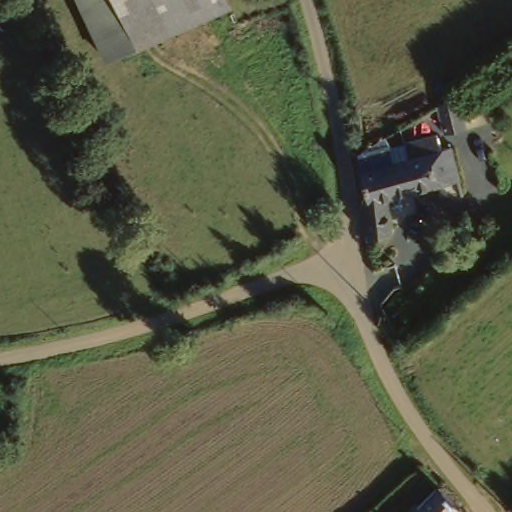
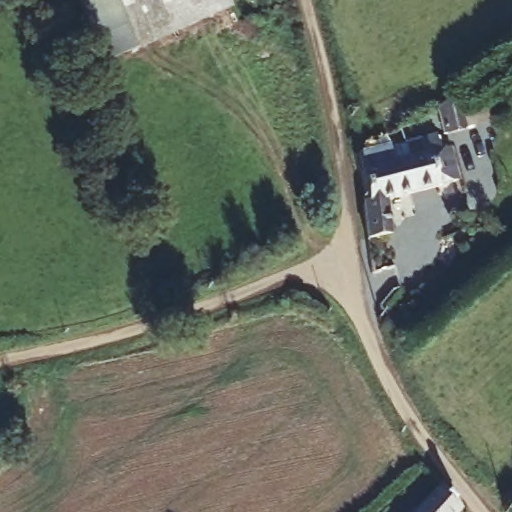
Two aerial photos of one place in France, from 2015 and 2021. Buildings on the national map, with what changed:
unchanged [(79,0),(124,0),(152,41),(117,64),(79,0)]
unchanged [(217,0),(152,41),(124,0),(217,0)]
unchanged [(449,104),(463,96),(465,88),(468,92),(479,111),(460,121),(449,104)]
unchanged [(372,191),(367,164),(413,150),(405,126),(437,116),(445,140),(453,137),(461,168),(390,192),(397,226),(372,232),(363,193),(372,191)]
unchanged [(446,512),(407,512),(441,477),(461,495),(446,512)]

